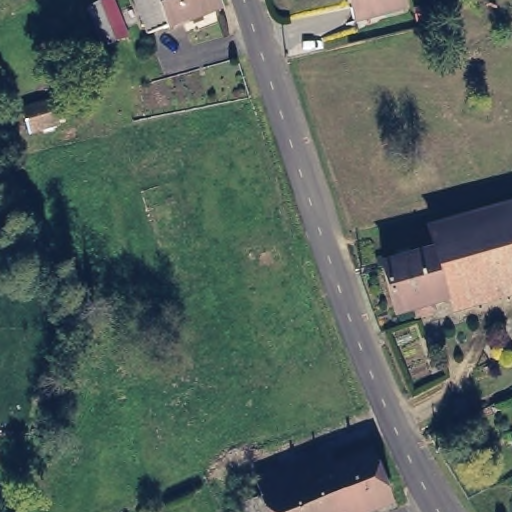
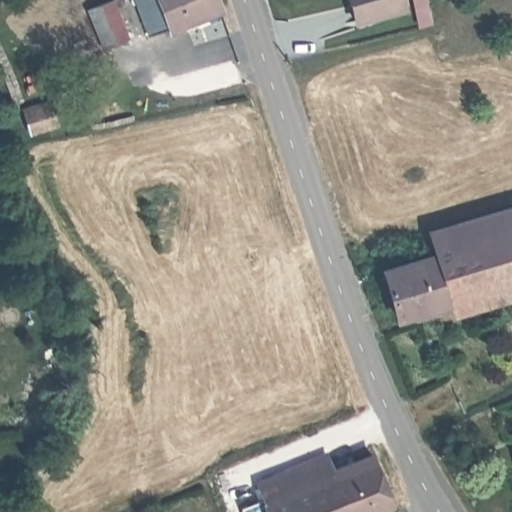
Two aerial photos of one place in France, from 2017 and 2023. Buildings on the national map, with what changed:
unchanged [(125,37),(102,45),(87,6),(104,0),(112,0),(125,37)]
unchanged [(225,9),(207,14),(207,20),(199,23),(197,18),(150,34),(138,0),(221,0),(225,9)]
unchanged [(406,9),(356,24),(349,0),(403,0),(406,9)]
unchanged [(50,100),(57,123),(30,131),(24,109),(50,100)]
unchanged [(432,310),(417,314),(415,308),(394,315),(380,265),(427,251),(424,242),(512,215),(512,278),(430,304),(432,310)]
unchanged [(342,478),(380,461),(400,511),(398,512),(274,512),(271,504),(265,491),(334,461),(342,478)]
unchanged [(253,512),(271,504),(274,512),(253,512)]

